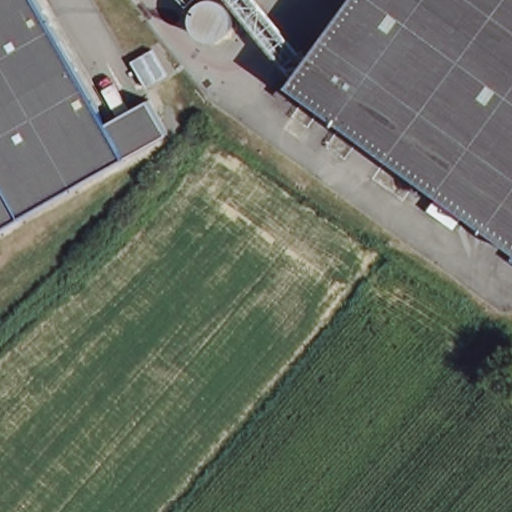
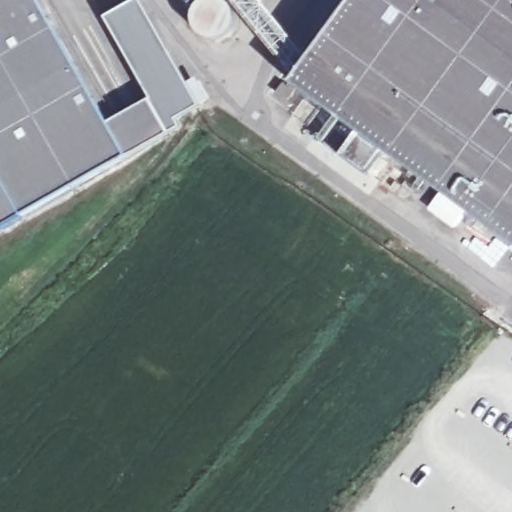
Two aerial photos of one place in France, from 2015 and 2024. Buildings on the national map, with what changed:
unchanged [(103,122),(123,157),(17,218),(0,228),(0,0),(33,0),(103,122)]
new [(176,118),(181,126),(165,134),(145,100),(151,97),(105,16),(135,0),(140,0),(198,105),(176,118)]
unchanged [(185,0),(201,0),(193,8),(185,0)]
unchanged [(236,8),(233,4),(229,0),(260,0),(308,58),(301,68),(294,77),(236,8)]
unchanged [(294,77),(301,68),(308,58),(350,0),(512,0),(512,244),(291,83),(294,77)]
unchanged [(103,122),(145,100),(165,134),(123,157),(103,122)]

